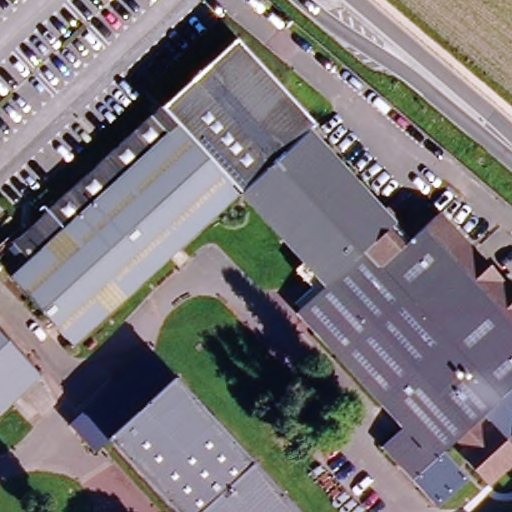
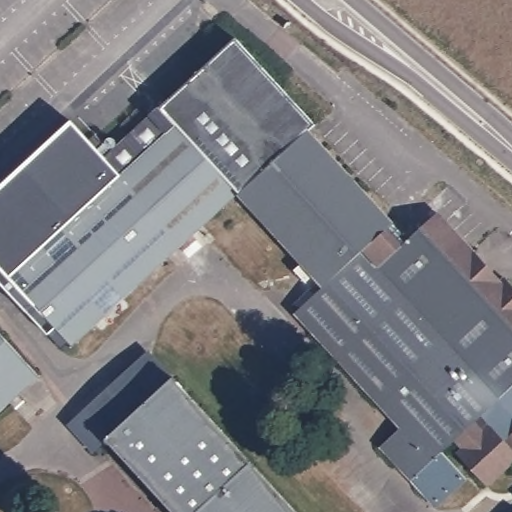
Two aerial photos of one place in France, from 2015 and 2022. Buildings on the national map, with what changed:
unchanged [(73,346),(10,279),(29,263),(12,244),(237,40),(313,127),(309,132),(408,243),(436,219),(468,256),(472,252),(500,284),(505,281),(512,288),(512,450),(508,446),(475,476),(447,446),(455,439),(445,430),(423,450),(436,465),(415,484),(380,446),(400,428),(297,314),(324,287),(312,275),(303,264),(240,194),(73,346)]
new [(27,311),(0,280),(0,187),(70,123),(104,161),(12,244),(29,263),(10,279),(55,327),(69,342),(60,350),(47,333),(27,311)]
demolished [(304,280),(287,296),(280,289),(297,273),(304,280)]
unchanged [(39,377),(0,413),(0,335),(39,377)]
unchanged [(149,353),(173,380),(133,417),(108,390),(149,353)]
unchanged [(95,451),(78,432),(84,426),(77,419),(108,390),(133,417),(173,380),(294,512),(174,512),(108,439),(95,451)]

